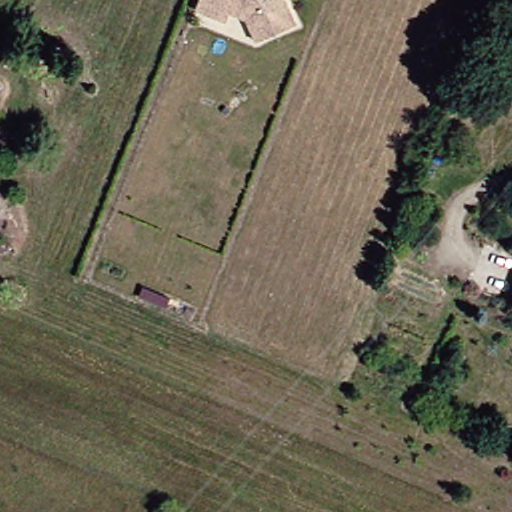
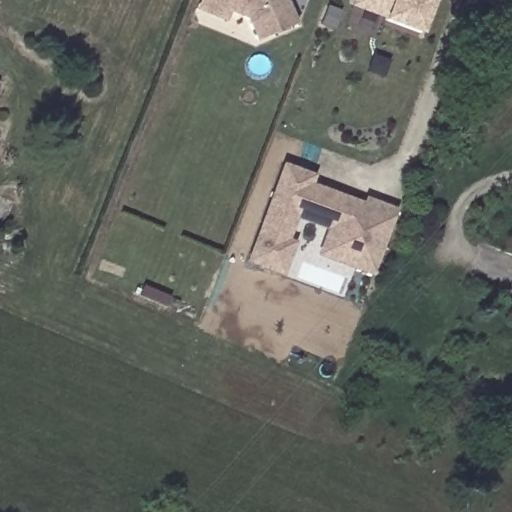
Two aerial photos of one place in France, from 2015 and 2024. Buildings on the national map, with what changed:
unchanged [(297,21),(258,39),(247,15),(229,9),(225,17),(198,6),(200,0),(288,0),(297,21)]
new [(420,34),(350,7),(353,0),(433,0),(420,34)]
new [(323,219),(295,210),(283,242),(284,240),(272,270),(245,263),(281,167),(302,175),(310,179),(306,187),(355,203),(357,197),(388,209),(365,272),(345,265),(310,252),(317,235),(323,219)]
unchanged [(512,303),(506,300),(512,286),(512,303)]

